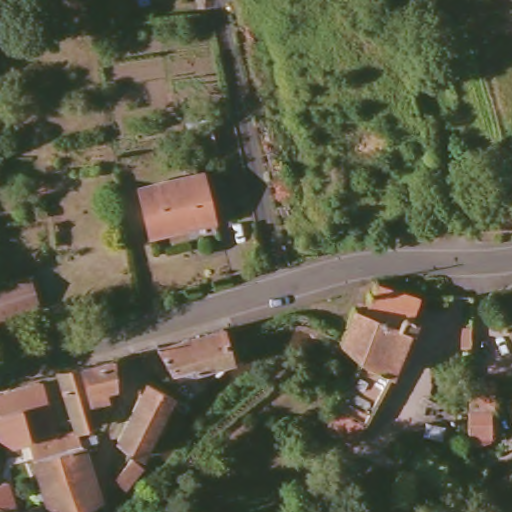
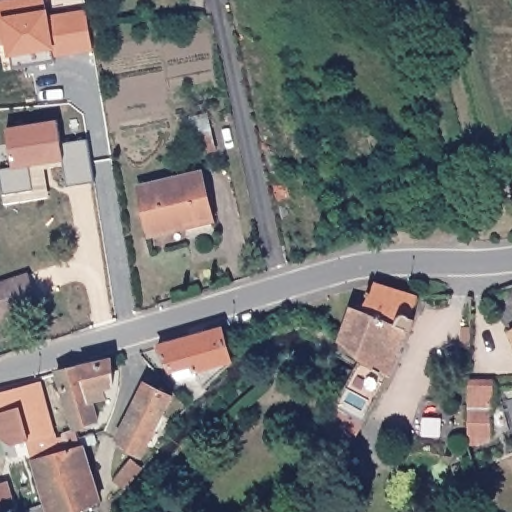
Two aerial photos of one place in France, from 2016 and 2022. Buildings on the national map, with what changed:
new [(8,54),(6,40),(0,41),(0,1),(9,0),(42,0),(45,17),(85,11),(90,47),(60,52),(60,48),(51,49),(53,61),(30,65),(10,69),(8,54)]
unchanged [(195,154),(187,123),(208,117),(217,149),(195,154)]
new [(60,128),(62,146),(89,142),(96,186),(68,191),(64,164),(31,169),(35,193),(4,198),(0,172),(13,170),(7,131),(57,123),(58,124),(60,128)]
unchanged [(186,223),(187,225),(152,234),(140,188),(202,172),(212,216),(186,223)]
unchanged [(42,304),(0,316),(0,283),(32,274),(42,304)]
unchanged [(335,409),(355,374),(362,360),(341,342),(354,307),(362,311),(368,298),(366,296),(368,292),(372,293),(375,284),(377,284),(413,294),(417,299),(410,318),(415,320),(415,325),(410,330),(393,373),(365,424),(335,409)]
unchanged [(191,366),(190,360),(169,366),(155,341),(220,322),(228,356),(191,366)]
unchanged [(101,420),(76,428),(58,372),(112,358),(115,384),(103,386),(105,396),(94,399),(101,420)]
unchanged [(124,445),(113,435),(142,379),(168,392),(137,451),(124,445)]
unchanged [(28,439),(13,443),(0,434),(0,413),(0,411),(0,393),(40,383),(60,451),(35,459),(28,439)]
unchanged [(499,413),(495,413),(495,442),(483,442),(483,449),(474,449),(474,410),(475,391),(475,385),(500,385),(499,397),(499,411),(499,413)]
unchanged [(60,451),(70,448),(65,432),(76,428),(80,438),(95,433),(97,442),(84,446),(100,498),(77,512),(52,512),(48,501),(35,459),(60,451)]
unchanged [(120,483),(110,474),(125,456),(128,453),(138,462),(120,483)]
unchanged [(10,480),(19,510),(43,502),(47,512),(12,512),(0,512),(0,482),(10,480)]

